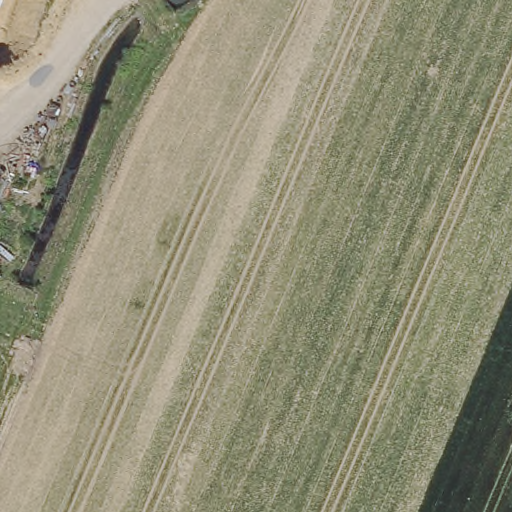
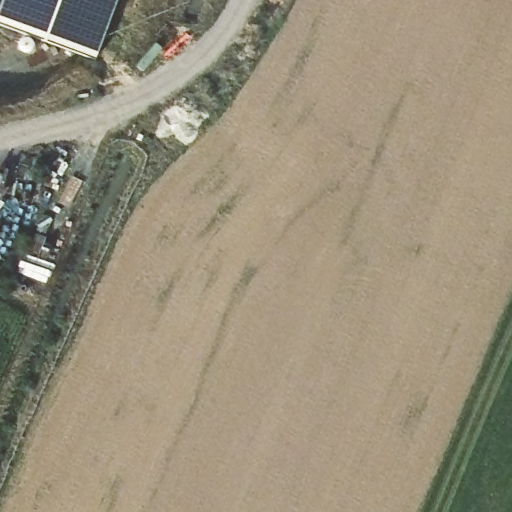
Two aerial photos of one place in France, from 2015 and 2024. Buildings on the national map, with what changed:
new [(0,0),(4,0),(0,12),(0,0)]
new [(96,57),(0,24),(0,12),(4,0),(118,0),(96,57)]

